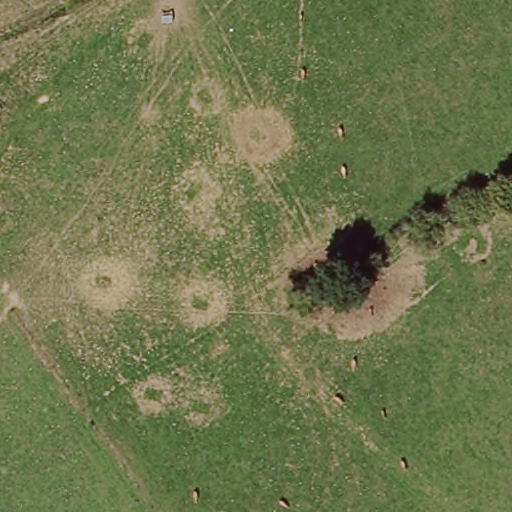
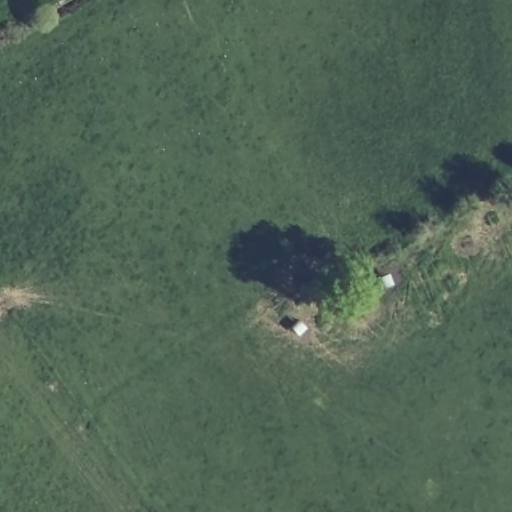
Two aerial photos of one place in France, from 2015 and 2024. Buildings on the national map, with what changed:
[]

